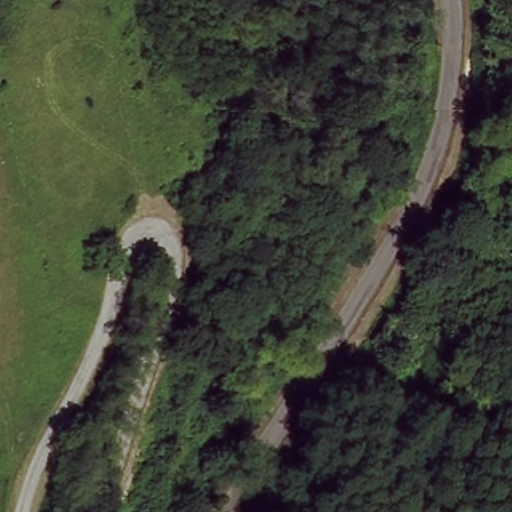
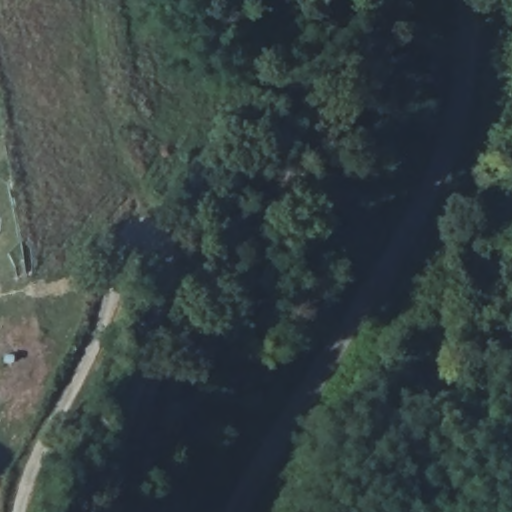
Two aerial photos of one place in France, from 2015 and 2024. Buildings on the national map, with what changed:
[]

